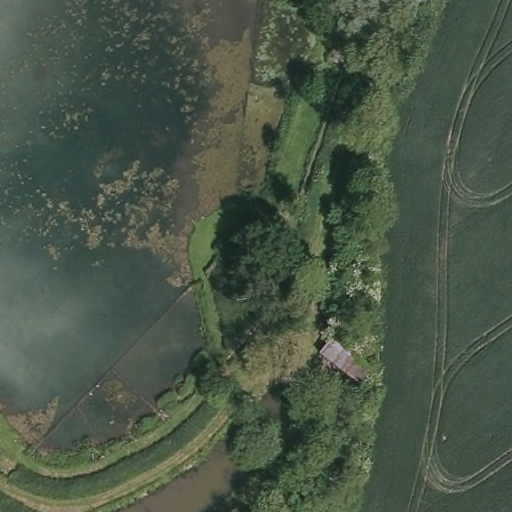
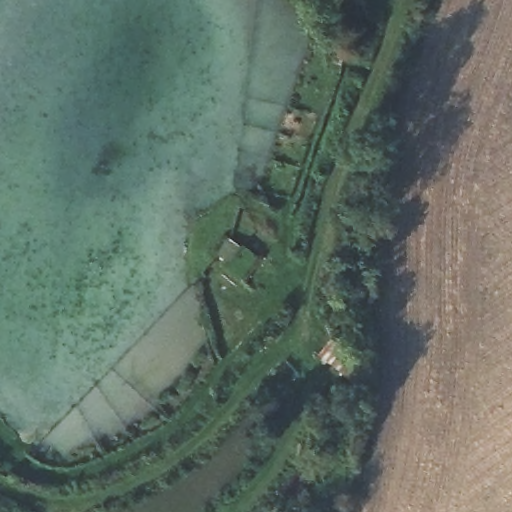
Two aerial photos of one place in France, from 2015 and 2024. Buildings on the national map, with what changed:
unchanged [(372,367),(360,385),(317,355),(332,335),(372,367)]

